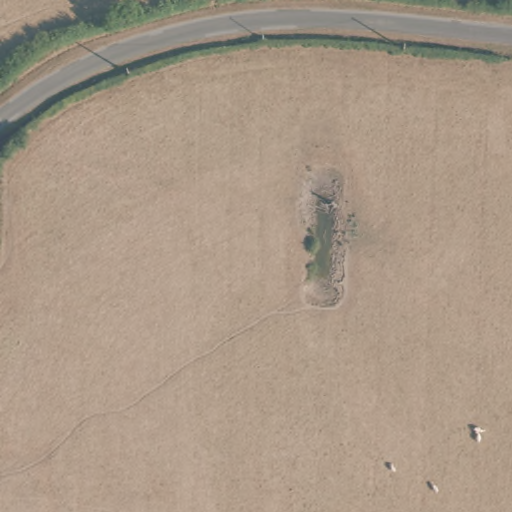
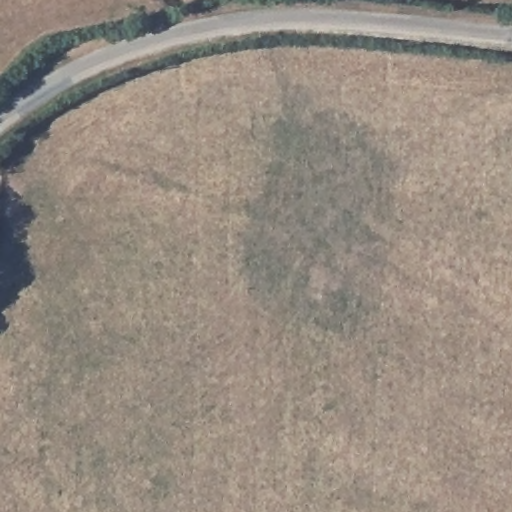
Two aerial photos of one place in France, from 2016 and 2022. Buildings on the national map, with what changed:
unchanged [(0,259),(0,218),(3,218),(0,259)]

